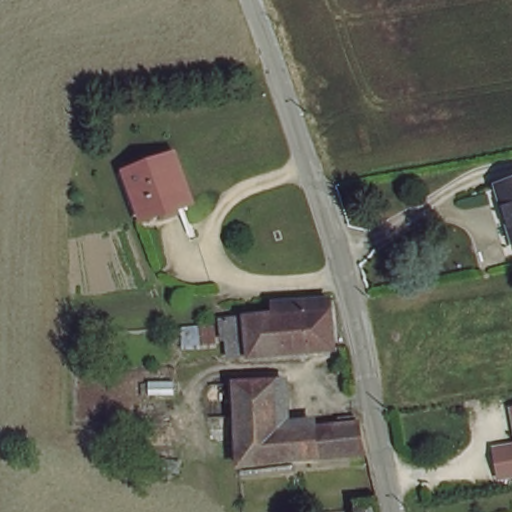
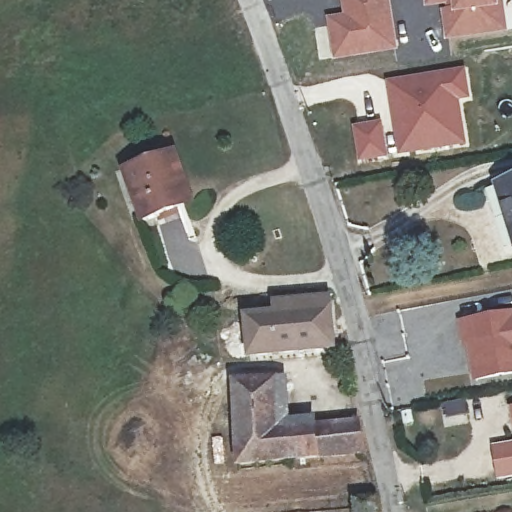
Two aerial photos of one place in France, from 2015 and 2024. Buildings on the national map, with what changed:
new [(340,0),(391,0),(399,51),(332,62),(325,17),(343,15),(340,0)]
new [(508,33),(445,42),(440,7),(424,9),(423,0),(499,0),(501,7),(508,33)]
new [(466,67),(472,100),(461,102),(467,145),(398,156),(385,81),(466,67)]
new [(381,120),(387,157),(357,162),(352,125),(381,120)]
unchanged [(179,203),(143,216),(125,164),(174,146),(184,172),(194,198),(179,203)]
unchanged [(512,173),(512,234),(494,178),(512,173)]
unchanged [(341,340),(233,351),(229,312),(280,305),(279,293),(323,291),(333,291),(341,340)]
new [(456,319),(512,309),(512,376),(470,382),(456,319)]
unchanged [(370,458),(238,466),(238,457),(232,382),(275,380),(279,430),(319,427),(319,430),(341,428),(343,419),(362,417),(370,458)]
new [(466,398),(469,422),(444,427),(440,403),(466,398)]
unchanged [(496,447),(512,445),(512,472),(499,474),(496,447)]
unchanged [(380,502),(382,512),(356,512),(356,504),(380,502)]

